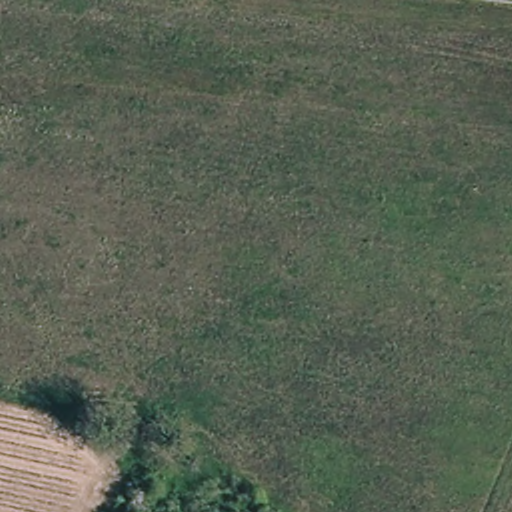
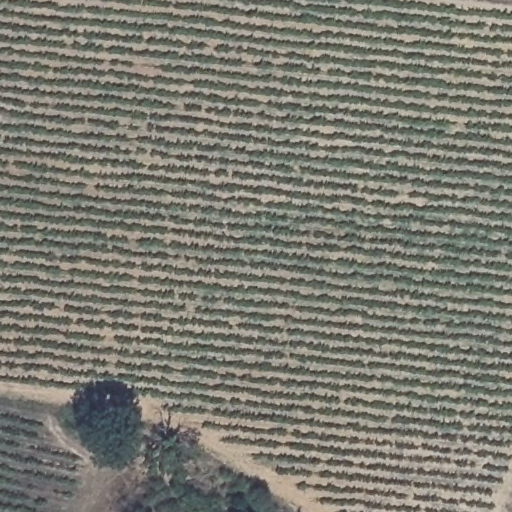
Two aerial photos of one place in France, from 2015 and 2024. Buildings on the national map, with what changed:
[]

